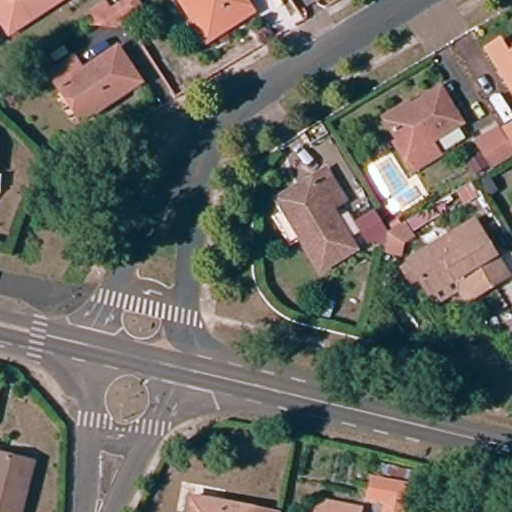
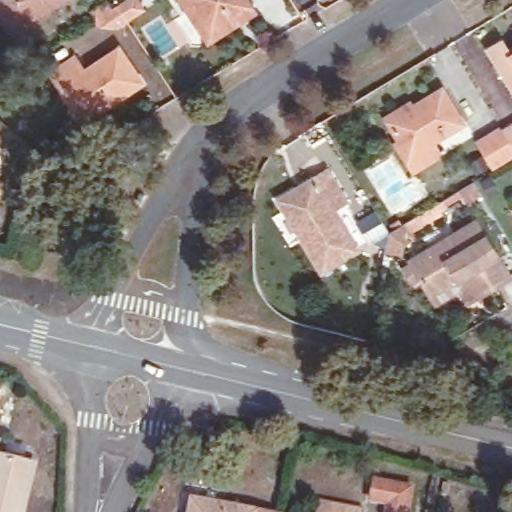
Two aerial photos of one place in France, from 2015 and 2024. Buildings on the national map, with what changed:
unchanged [(5,38),(0,31),(0,0),(63,0),(5,38)]
unchanged [(88,23),(114,5),(122,0),(138,0),(141,4),(122,17),(116,22),(88,23)]
unchanged [(189,19),(178,0),(244,0),(251,12),(237,23),(204,44),(189,19)]
unchanged [(487,49),(503,40),(511,52),(512,51),(512,90),(487,49)]
unchanged [(54,96),(44,77),(70,61),(78,74),(113,54),(133,89),(102,107),(75,125),(54,96)]
unchanged [(463,118),(431,139),(440,152),(408,172),(397,157),(404,152),(383,117),(441,82),(463,118)]
unchanged [(501,124),(505,131),(512,127),(512,156),(495,167),(477,139),(501,124)]
unchanged [(331,166),(350,196),(336,206),(360,245),(325,268),(280,199),(331,166)]
unchanged [(390,228),(373,237),(361,217),(377,207),(390,228)]
unchanged [(403,251),(387,248),(391,230),(407,220),(415,234),(406,240),(403,251)]
unchanged [(458,286),(437,298),(431,289),(412,259),(477,221),(510,273),(479,292),(468,300),(458,286)]
unchanged [(19,512),(0,512),(0,468),(28,474),(19,512)]
unchanged [(402,512),(383,512),(385,503),(368,498),(372,478),(407,487),(402,512)]
unchanged [(358,506),(357,512),(315,512),(318,497),(358,506)]
unchanged [(223,512),(183,512),(185,503),(223,512)]

